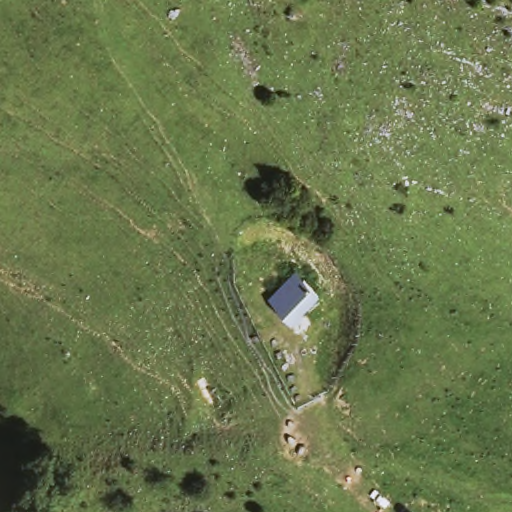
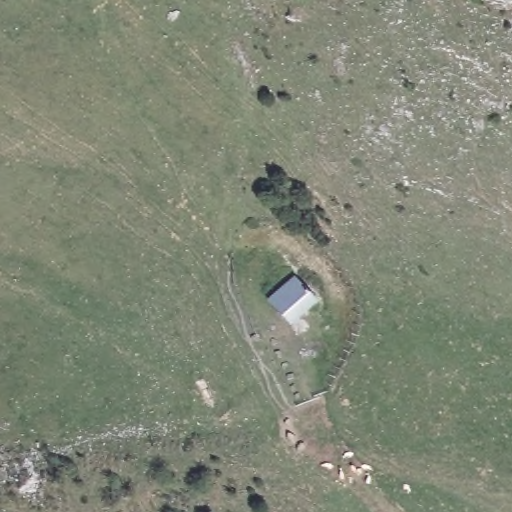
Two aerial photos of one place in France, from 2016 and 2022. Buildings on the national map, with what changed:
unchanged [(318,311),(292,332),(276,319),(258,306),(285,282),(318,311)]

